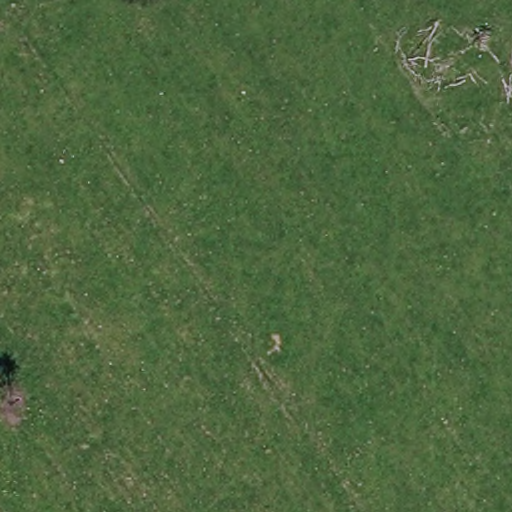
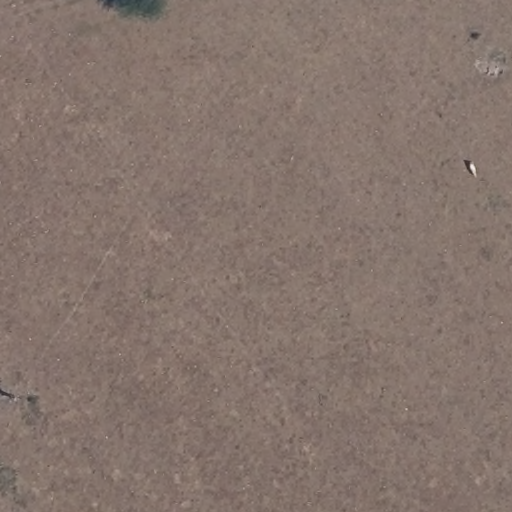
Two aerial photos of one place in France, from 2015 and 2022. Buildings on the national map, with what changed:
[]

